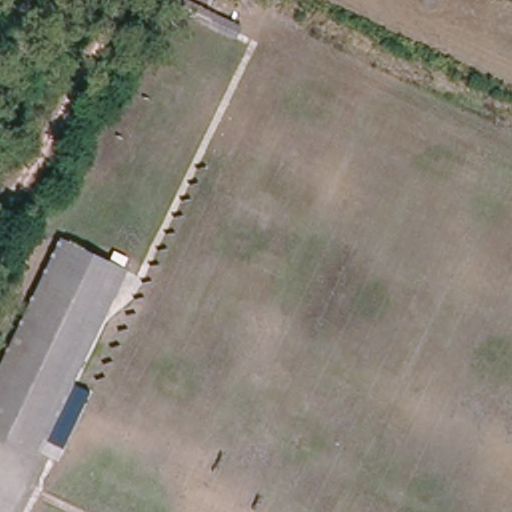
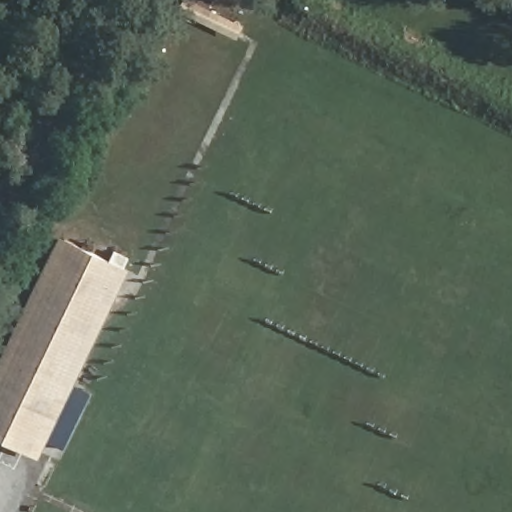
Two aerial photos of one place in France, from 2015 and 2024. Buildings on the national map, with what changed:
unchanged [(125,266),(35,460),(0,443),(0,352),(56,234),(125,266)]

